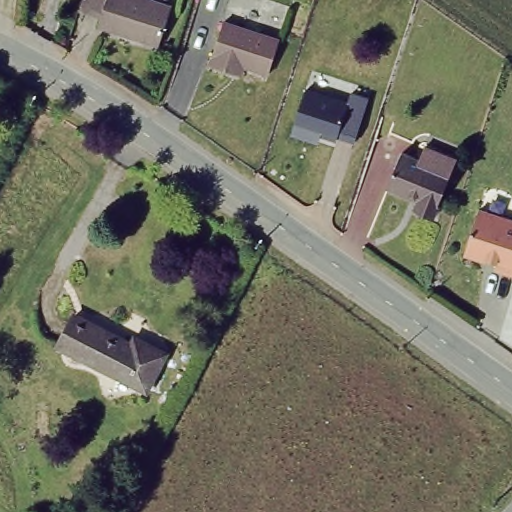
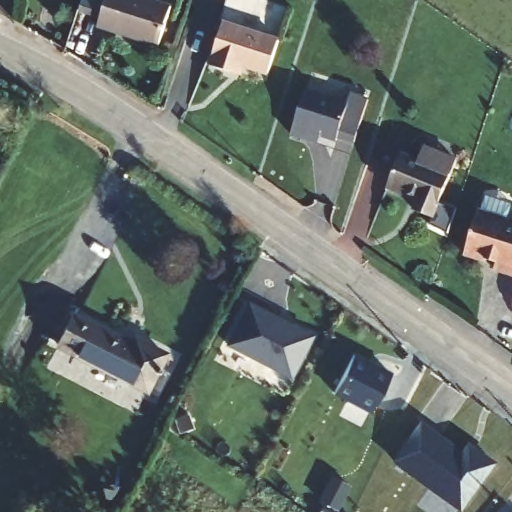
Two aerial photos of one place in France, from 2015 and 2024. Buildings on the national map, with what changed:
unchanged [(136,0),(169,12),(157,49),(98,29),(101,17),(78,10),(82,0),(136,0)]
unchanged [(233,70),(213,63),(227,22),(281,43),(269,74),(253,67),(249,76),(233,70)]
unchanged [(306,105),(311,92),(354,105),(355,100),(375,107),(362,149),(319,135),(313,146),(295,139),(308,106),(306,105)]
unchanged [(427,145),(460,157),(455,174),(441,218),(423,211),(428,198),(415,193),(414,196),(392,189),(405,155),(421,160),(427,145)]
unchanged [(498,272),(500,266),(467,255),(481,214),(512,219),(512,275),(498,272)]
new [(314,335),(291,378),(225,345),(249,301),(314,335)]
unchanged [(78,321),(133,350),(138,340),(167,356),(148,392),(64,351),(78,321)]
new [(392,372),(373,413),(334,395),(354,353),(392,372)]
new [(423,423),(463,452),(470,441),(499,463),(464,512),(461,512),(393,462),(423,423)]

